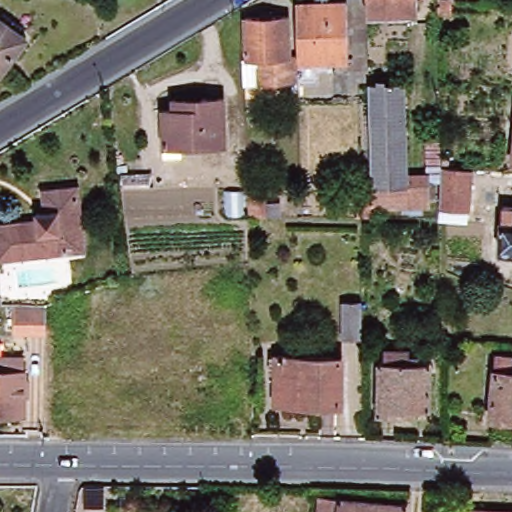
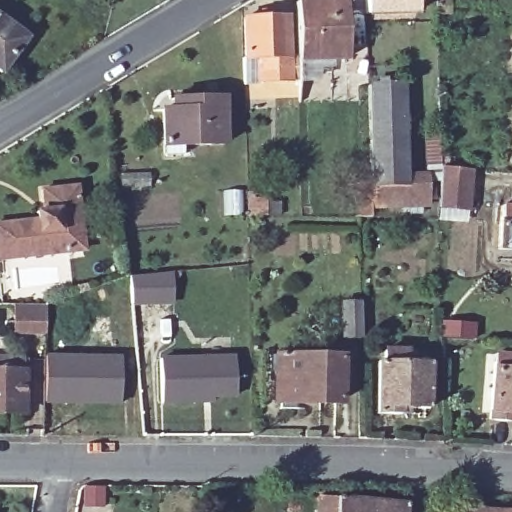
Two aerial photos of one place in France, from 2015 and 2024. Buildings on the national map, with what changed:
unchanged [(415,11),(364,13),(364,0),(415,0),(415,11)]
unchanged [(436,10),(436,5),(436,0),(445,0),(449,0),(449,6),(449,11),(436,10)]
unchanged [(297,3),(343,3),(345,57),(316,58),(316,78),(300,78),(299,58),(297,3)]
unchanged [(26,38),(0,70),(0,18),(26,38)]
unchanged [(300,78),(300,82),(267,83),(265,62),(245,62),(245,22),(287,21),(287,58),(299,58),(300,78)]
unchanged [(367,85),(402,84),(405,176),(427,175),(427,205),(368,207),(367,85)]
unchanged [(221,98),(223,143),(164,146),(161,109),(172,109),(172,99),(221,98)]
unchanged [(439,165),(470,169),(468,206),(439,205),(439,165)]
unchanged [(70,254),(0,261),(0,225),(41,222),(40,213),(46,213),(45,191),(79,189),(83,231),(86,253),(70,254)]
unchanged [(246,213),(245,190),(252,190),(252,196),(264,196),(264,213),(246,213)]
unchanged [(512,250),(497,248),(500,203),(512,205),(512,250)]
unchanged [(281,218),(281,233),(264,232),(264,218),(281,218)]
new [(169,273),(172,304),(130,308),(127,277),(169,273)]
unchanged [(360,333),(340,333),(341,300),(359,299),(360,333)]
unchanged [(19,335),(19,308),(36,308),(35,336),(19,335)]
new [(45,352),(122,354),(121,404),(43,401),(45,352)]
new [(233,354),(234,393),(200,394),(200,399),(159,400),(158,356),(233,354)]
unchanged [(429,406),(405,405),(405,410),(381,409),(384,356),(431,358),(429,406)]
unchanged [(494,358),(512,359),(512,425),(492,423),(494,358)]
unchanged [(341,362),(339,408),(277,405),(279,359),(341,362)]
unchanged [(23,365),(24,408),(0,408),(0,366),(23,365)]
unchanged [(406,512),(319,512),(321,495),(407,503),(406,512)]
unchanged [(512,512),(472,512),(472,509),(512,512)]

